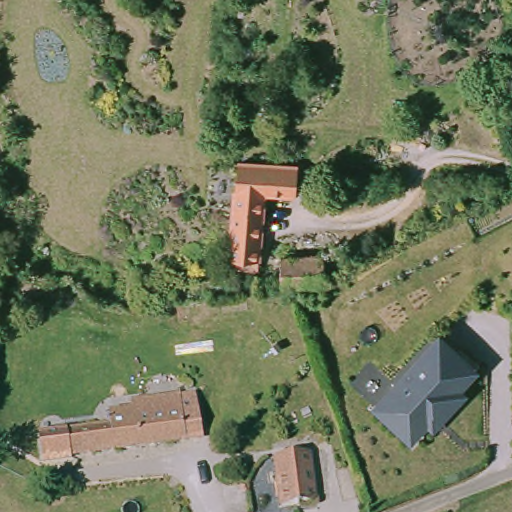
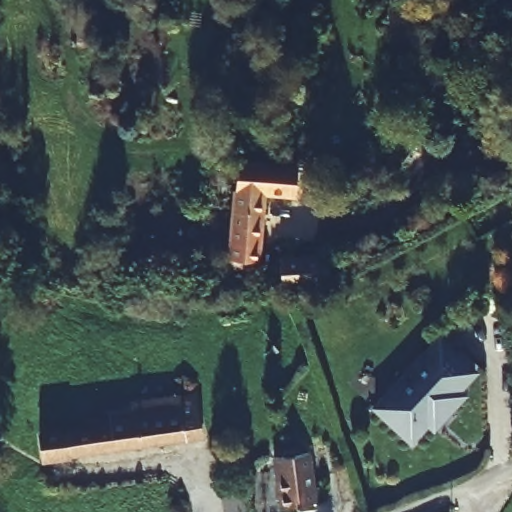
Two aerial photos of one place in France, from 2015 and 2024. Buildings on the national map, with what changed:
unchanged [(238,155),(292,160),(290,187),(263,185),(257,254),(229,251),(238,155)]
unchanged [(270,280),(272,253),(286,252),(285,249),(330,247),(330,279),(294,280),(287,280),(280,280),(270,280)]
unchanged [(443,403),(449,409),(432,427),(427,422),(410,440),(377,410),(443,338),(476,368),(443,403)]
unchanged [(47,451),(44,433),(111,425),(109,413),(132,410),(131,402),(180,396),(181,401),(183,415),(197,413),(201,437),(47,456),(47,451)]
unchanged [(273,456),(309,451),(315,501),(279,506),(273,456)]

